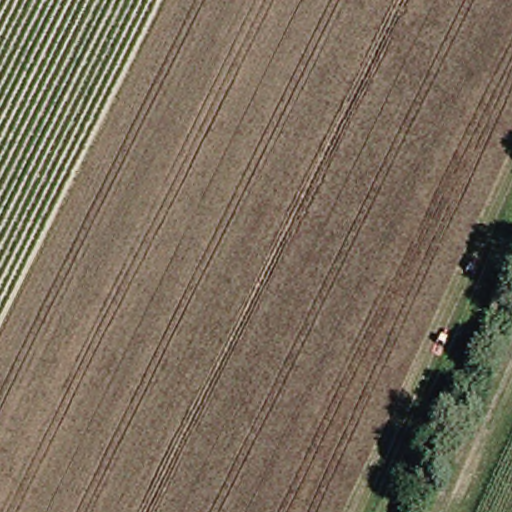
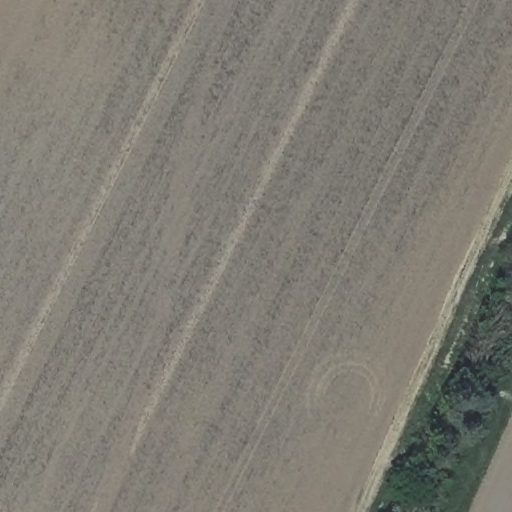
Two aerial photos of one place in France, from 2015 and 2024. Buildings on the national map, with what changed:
[]

